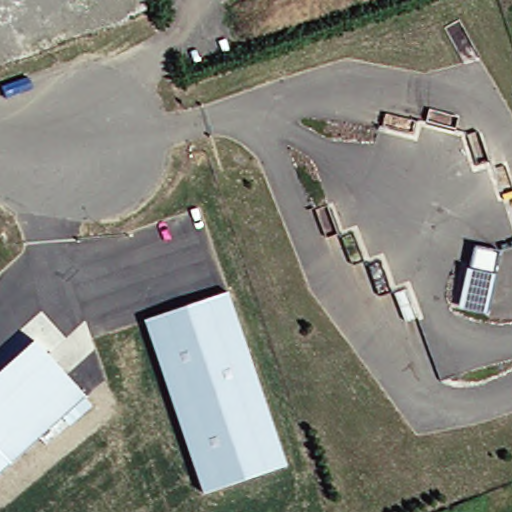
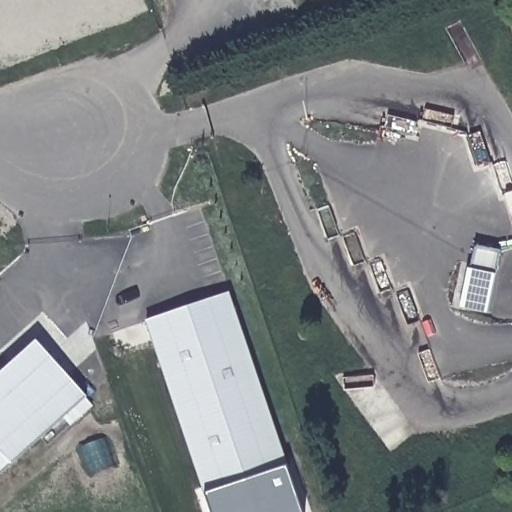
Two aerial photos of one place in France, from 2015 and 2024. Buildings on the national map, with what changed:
unchanged [(477,248),(501,254),(487,313),(463,307),(467,289),(470,279),(477,248)]
unchanged [(205,494),(145,322),(227,292),(286,466),(205,494)]
unchanged [(37,339),(87,394),(13,462),(0,448),(0,372),(37,339)]
new [(0,474),(0,448),(13,462),(0,474)]
new [(286,466),(302,512),(211,512),(205,494),(286,466)]

